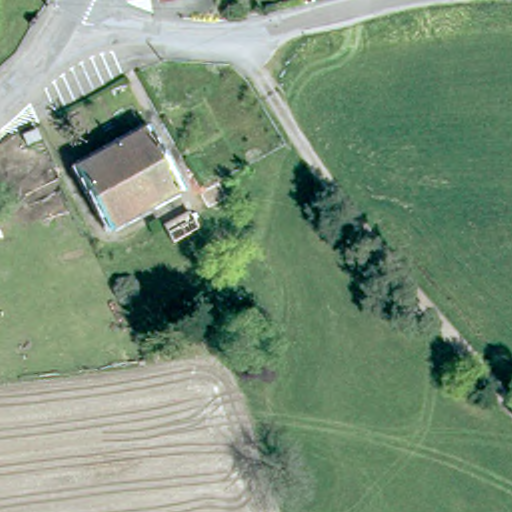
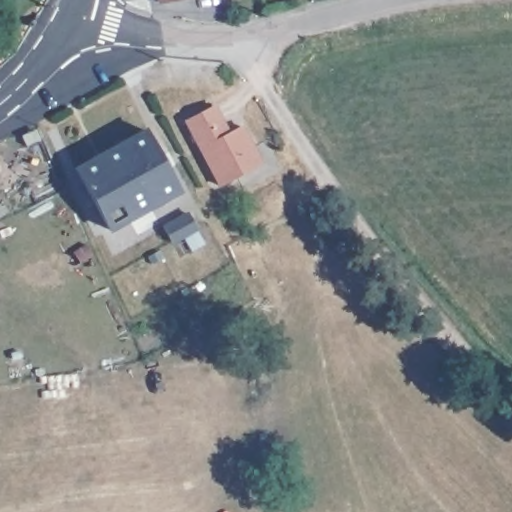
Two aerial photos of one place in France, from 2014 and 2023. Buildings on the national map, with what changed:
unchanged [(158,2),(158,0),(169,0),(158,2)]
new [(213,104),(228,131),(240,125),(260,161),(219,184),(185,120),(213,104)]
unchanged [(77,168),(144,131),(178,191),(112,229),(77,168)]
unchanged [(25,155),(20,144),(33,139),(37,150),(25,155)]
unchanged [(165,226),(188,215),(196,230),(172,242),(165,226)]

